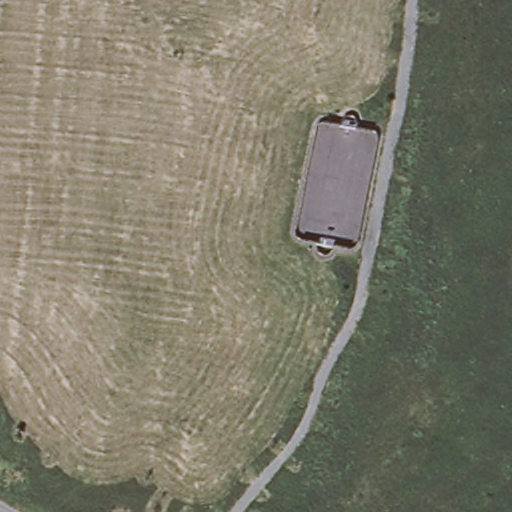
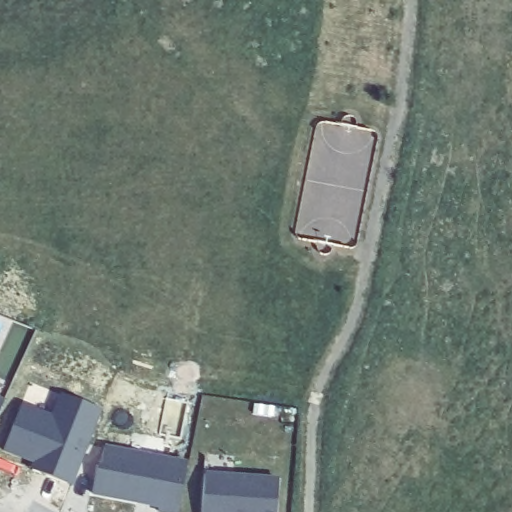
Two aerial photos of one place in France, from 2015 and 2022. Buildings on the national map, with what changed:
new [(52,412),(60,391),(102,410),(74,484),(32,468),(35,461),(5,449),(24,402),(52,412)]
new [(4,402),(0,411),(0,400),(4,402)]
new [(188,460),(180,512),(158,512),(159,505),(92,492),(105,445),(188,460)]
new [(276,512),(202,512),(205,474),(278,480),(276,512)]

